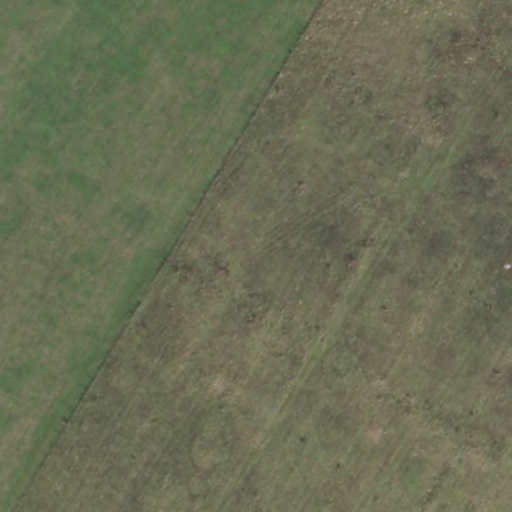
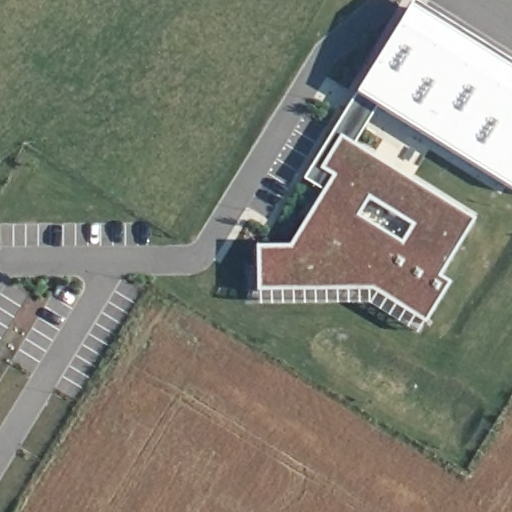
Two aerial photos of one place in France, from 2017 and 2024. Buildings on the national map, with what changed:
new [(410,7),(355,95),(375,107),(352,145),(338,136),(317,170),(330,177),(321,191),(302,180),(412,0),(512,62),(512,71),(410,7)]
new [(375,107),(355,95),(410,7),(512,71),(512,191),(375,107)]
new [(474,219),(439,276),(449,283),(423,324),(370,292),(254,293),(253,247),(287,246),(330,177),(317,170),(338,136),(474,219)]

